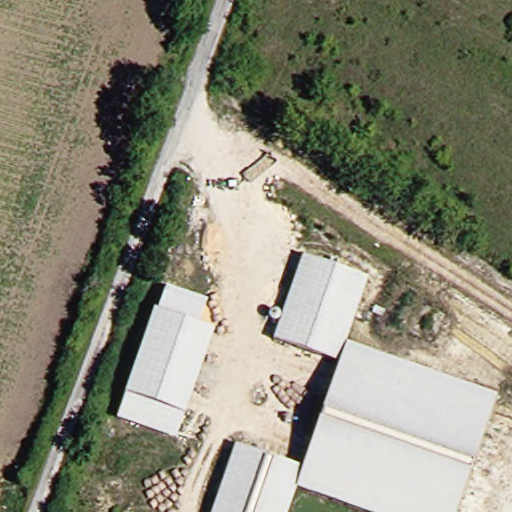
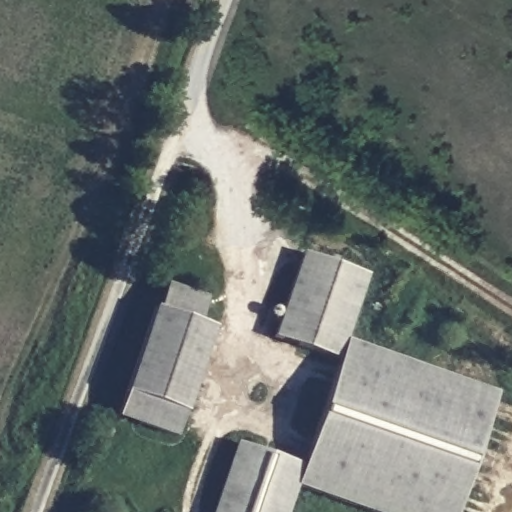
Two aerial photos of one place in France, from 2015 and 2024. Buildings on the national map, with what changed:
unchanged [(289,512),(214,512),(236,446),(301,468),(340,361),(273,339),(303,252),(370,276),(347,340),(500,392),(458,512),(363,512),(297,488),(289,512)]
unchanged [(153,308),(214,331),(185,416),(176,438),(116,417),(125,393),(153,308)]

